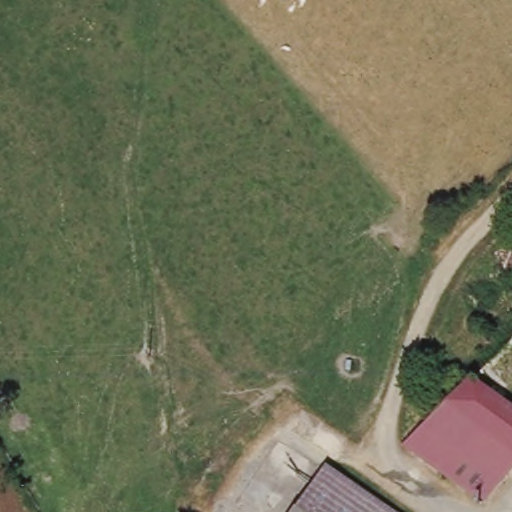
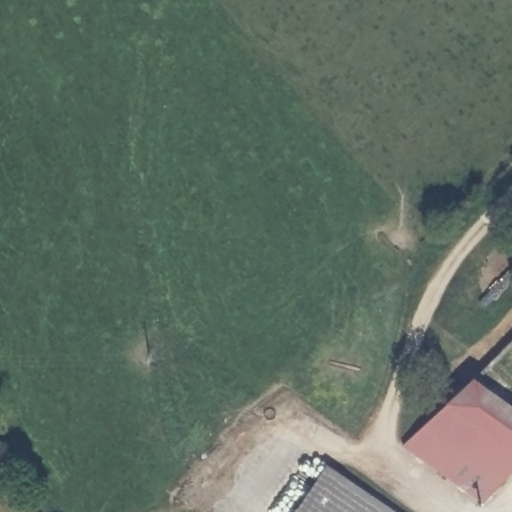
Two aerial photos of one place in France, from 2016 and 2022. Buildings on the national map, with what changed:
unchanged [(512,484),(490,508),(409,438),(442,407),(481,371),(512,395),(512,484)]
unchanged [(293,510),(308,489),(331,462),(337,467),(393,512),(292,512),(293,510)]

